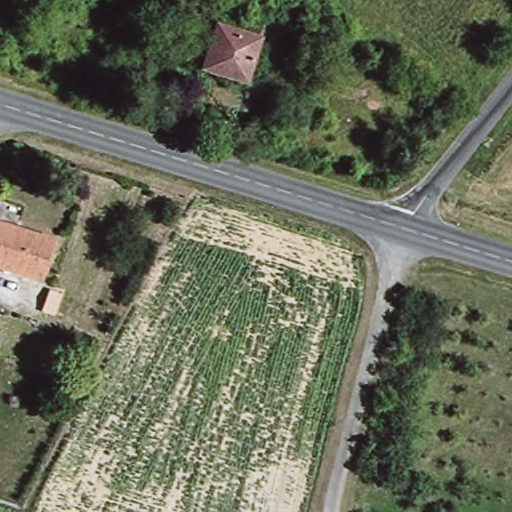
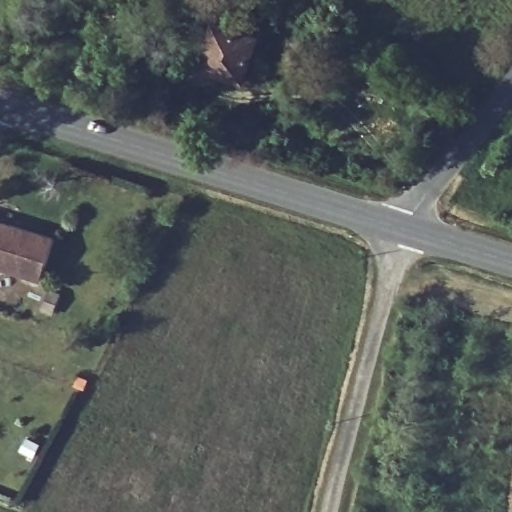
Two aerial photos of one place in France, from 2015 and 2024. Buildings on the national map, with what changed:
unchanged [(191,63),(209,6),(226,12),(223,24),(209,69),(191,63)]
unchanged [(223,24),(270,39),(256,84),(209,69),(223,24)]
unchanged [(51,232),(40,273),(0,261),(0,218),(51,232)]

